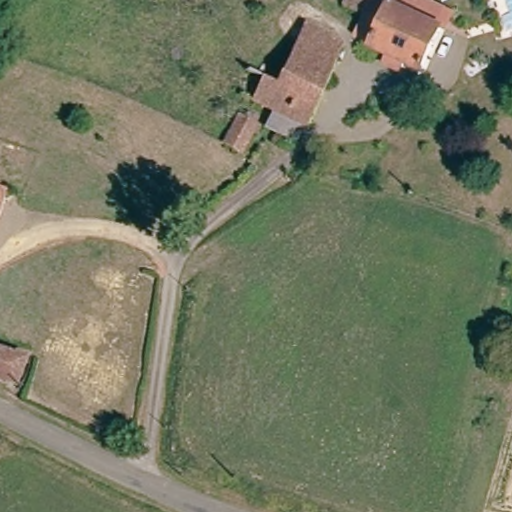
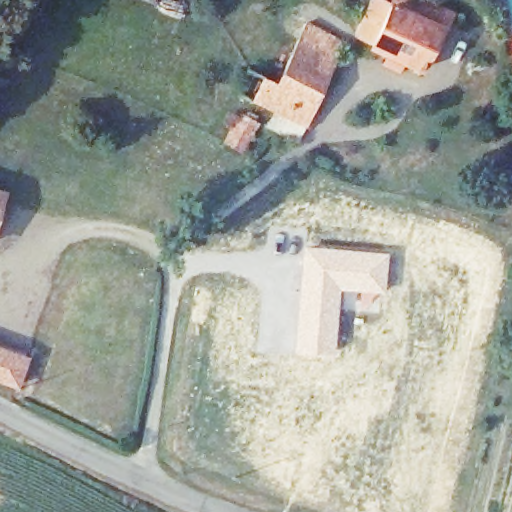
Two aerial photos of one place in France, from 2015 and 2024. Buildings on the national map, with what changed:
unchanged [(384,47),(348,28),(361,0),(434,0),(450,9),(441,25),(431,40),(421,67),(403,57),(396,70),(377,59),(384,47)]
unchanged [(346,48),(300,142),(286,133),(273,126),(280,110),(257,99),(267,77),(279,84),(300,42),(285,34),(291,18),(346,48)]
unchanged [(249,66),(271,26),(285,34),(300,42),(279,84),(267,77),(249,66)]
new [(303,243),(388,251),(385,293),(342,290),(335,354),(294,351),(303,243)]
unchanged [(24,385),(8,380),(0,377),(0,342),(15,347),(32,353),(24,385)]

